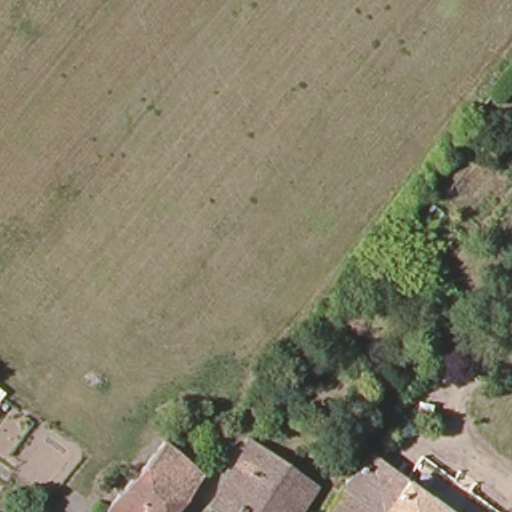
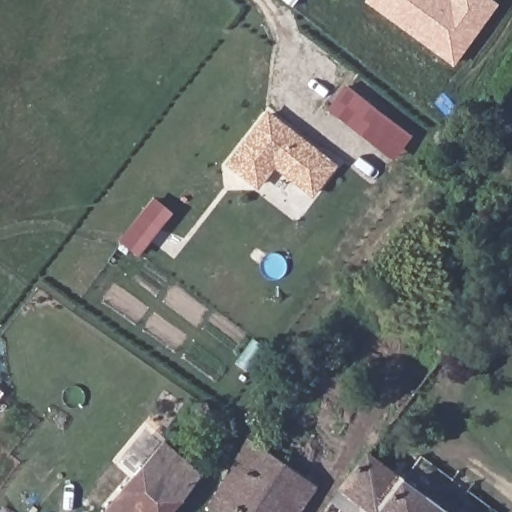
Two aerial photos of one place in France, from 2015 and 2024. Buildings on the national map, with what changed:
new [(365,0),(494,0),(499,4),(454,66),(365,1),(365,0)]
new [(394,160),(327,108),(346,85),(413,136),(394,160)]
new [(309,195),(275,169),(258,185),(228,162),(268,110),(339,165),(312,191),(309,195)]
unchanged [(250,433),(316,478),(293,512),(230,512),(212,502),(250,433)]
unchanged [(163,442),(199,475),(167,512),(110,512),(106,508),(163,442)]
unchanged [(367,512),(335,487),(362,451),(444,512),(367,512)]
unchanged [(367,512),(320,512),(335,487),(367,512)]

